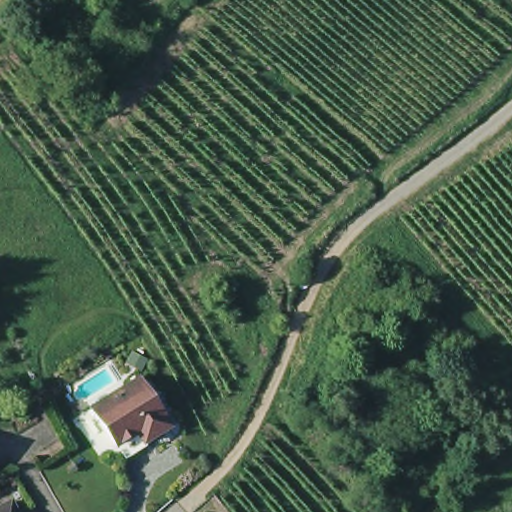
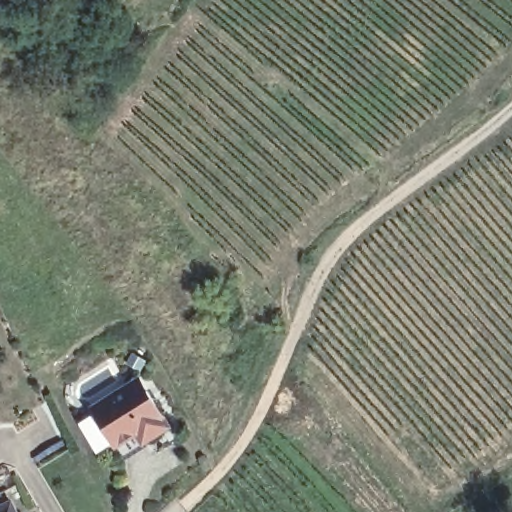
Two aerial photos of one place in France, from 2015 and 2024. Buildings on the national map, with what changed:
unchanged [(143,443),(137,433),(116,447),(102,427),(90,410),(108,398),(137,380),(147,395),(168,426),(143,443)]
unchanged [(11,512),(0,512),(0,506),(7,502),(11,512)]

